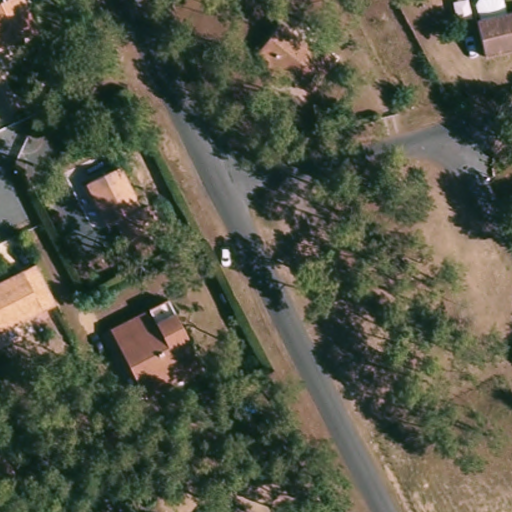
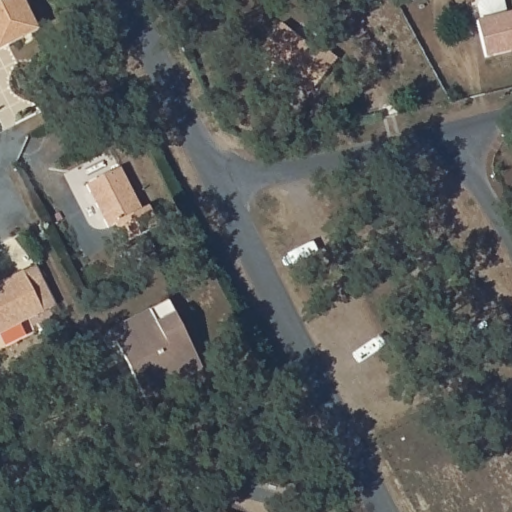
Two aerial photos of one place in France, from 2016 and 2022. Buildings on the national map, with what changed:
unchanged [(24,0),(38,29),(7,44),(0,48),(0,0),(24,0)]
unchanged [(477,1),(482,0),(500,0),(503,15),(512,13),(512,51),(484,58),(475,22),(479,21),(475,5),(477,1)]
unchanged [(295,82),(285,75),(281,77),(276,77),(273,76),(270,73),(268,69),(268,66),(257,59),(279,28),(314,53),(319,46),(334,57),(316,82),(309,91),(295,82)]
unchanged [(116,167),(136,206),(144,202),(155,225),(121,242),(113,223),(103,228),(81,184),(116,167)]
unchanged [(53,305),(0,331),(0,281),(33,264),(53,305)]
unchanged [(199,364),(140,393),(111,337),(104,324),(144,304),(164,295),(199,364)]
unchanged [(221,508),(231,512),(220,512),(221,508)]

